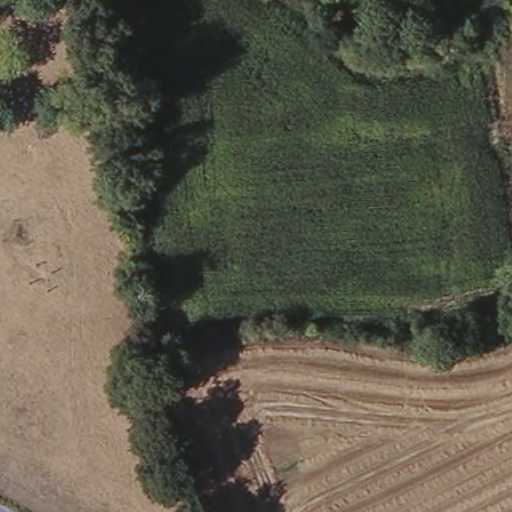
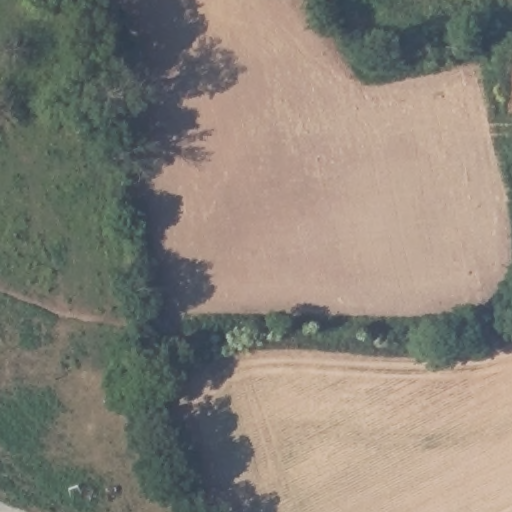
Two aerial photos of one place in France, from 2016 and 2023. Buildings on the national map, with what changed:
[]

